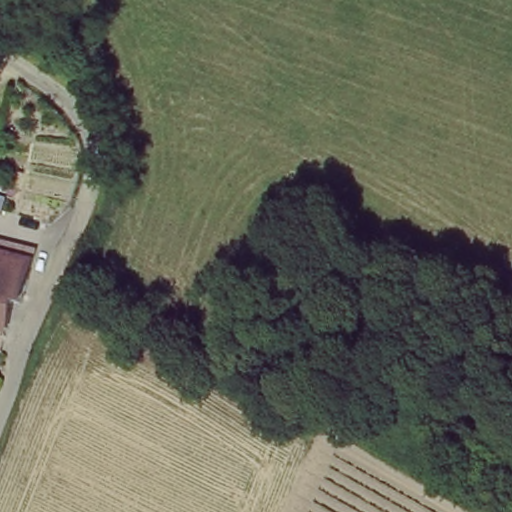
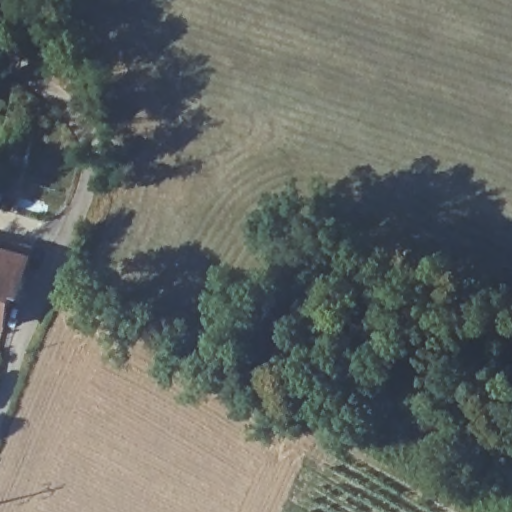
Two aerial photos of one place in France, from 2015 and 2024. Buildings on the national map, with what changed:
unchanged [(9,301),(0,328),(0,240),(30,251),(28,262),(19,303),(9,301)]
unchanged [(290,310),(273,357),(253,350),(270,302),(290,310)]

